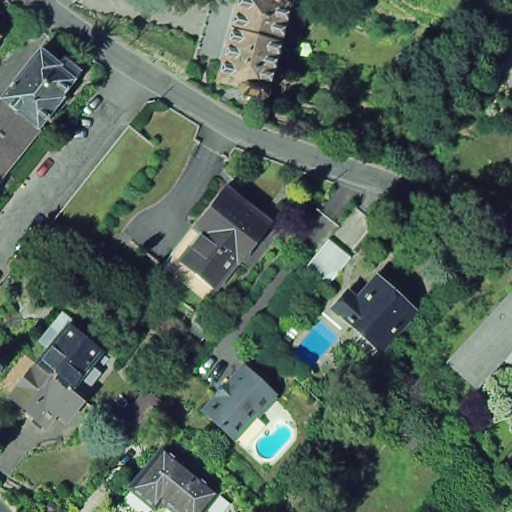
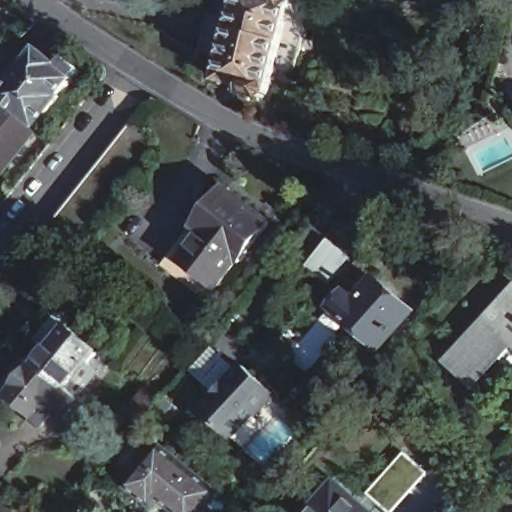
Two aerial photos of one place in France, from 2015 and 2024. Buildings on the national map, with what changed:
unchanged [(267,95),(262,99),(242,93),(240,88),(240,86),(218,81),(222,66),(197,60),(206,24),(212,0),(226,0),(237,3),(238,0),(308,0),(311,1),(300,43),(299,48),(292,73),(275,68),(267,95)]
unchanged [(40,49),(59,64),(65,56),(82,70),(62,96),(64,97),(39,128),(2,98),(40,49)]
unchanged [(39,128),(1,175),(0,174),(0,100),(2,98),(39,128)]
unchanged [(180,258),(182,259),(189,249),(202,233),(200,232),(195,227),(225,188),(232,193),(270,223),(239,263),(237,261),(215,289),(206,301),(169,271),(163,266),(174,253),(180,258)]
unchanged [(324,245),(327,240),(338,249),(317,276),(306,267),(324,245)]
unchanged [(342,298),(356,283),(366,292),(387,269),(422,302),(389,339),(380,348),(364,333),(372,324),(342,298)]
unchanged [(494,317),(492,315),(512,293),(512,345),(479,382),(454,360),(494,317)]
unchanged [(49,349),(39,341),(62,313),(72,321),(69,326),(100,351),(89,364),(98,372),(78,397),(37,362),(49,349)]
unchanged [(203,318),(214,326),(202,340),(192,332),(203,318)]
unchanged [(65,418),(55,410),(45,424),(34,416),(10,396),(0,385),(0,383),(24,354),(36,364),(37,362),(78,397),(80,399),(65,418)]
unchanged [(244,357),(281,397),(231,448),(198,413),(244,357)]
unchanged [(127,414),(146,390),(160,402),(153,411),(142,425),(127,414)]
unchanged [(210,501),(201,512),(188,512),(165,494),(159,502),(135,482),(167,443),(217,484),(221,488),(210,501)]
unchanged [(509,456),(512,452),(512,459),(509,456)]
new [(395,512),(389,512),(369,495),(405,453),(429,474),(395,512)]
new [(334,479),(372,512),(304,512),(334,479)]

